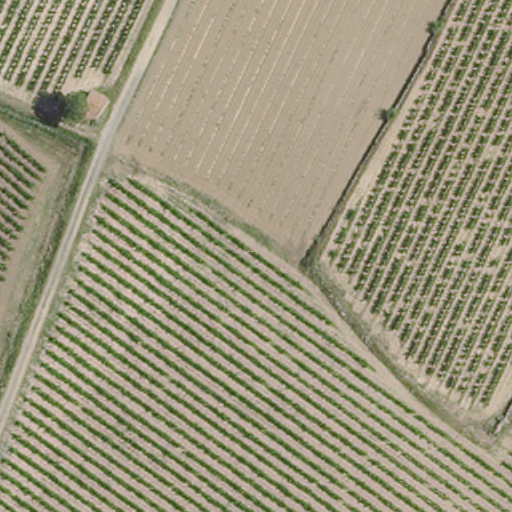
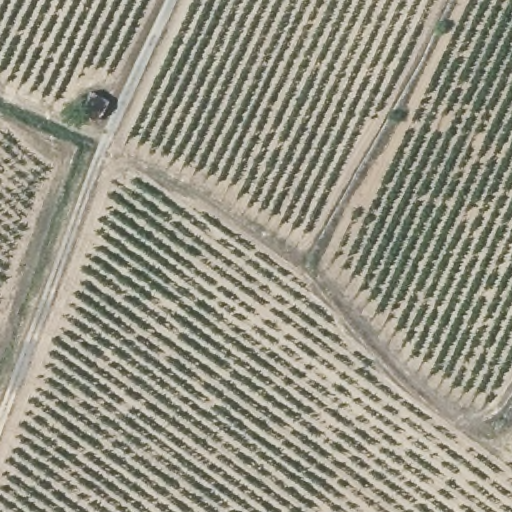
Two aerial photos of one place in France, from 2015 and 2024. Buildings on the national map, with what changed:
unchanged [(107,102),(95,129),(78,121),(91,93),(107,102)]

